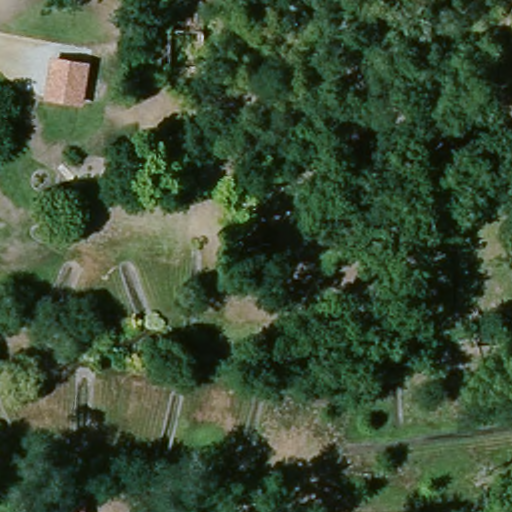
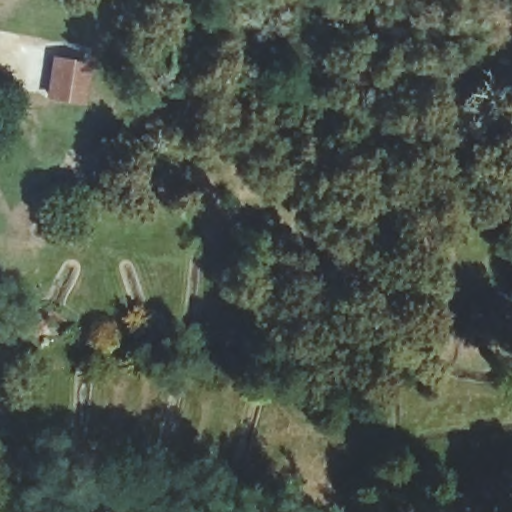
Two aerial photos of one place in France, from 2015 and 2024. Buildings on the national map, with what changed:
unchanged [(76,100),(58,98),(63,68),(80,70),(76,100)]
unchanged [(92,512),(77,512),(77,505),(92,505),(92,512)]

